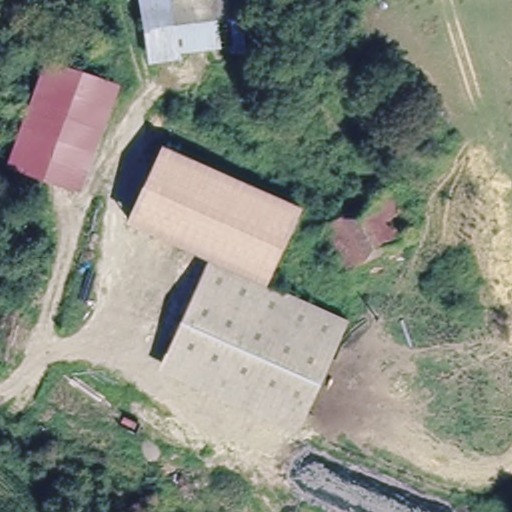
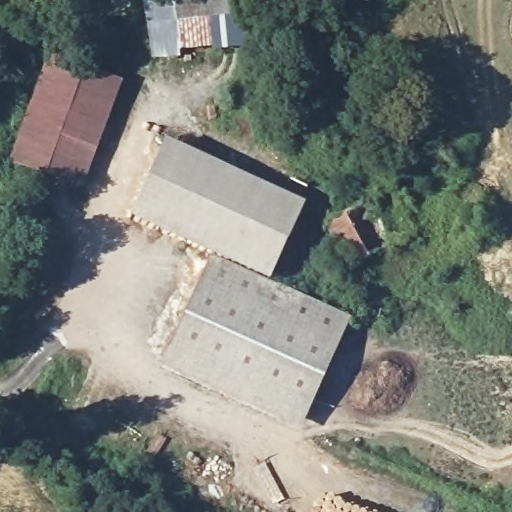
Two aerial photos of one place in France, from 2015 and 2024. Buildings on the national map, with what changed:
unchanged [(151,6),(149,0),(246,0),(255,26),(197,45),(166,55),(151,6)]
unchanged [(83,190),(9,161),(42,57),(121,80),(83,190)]
unchanged [(129,219),(164,141),(306,204),(269,283),(210,254),(129,219)]
unchanged [(405,221),(410,216),(415,224),(351,262),(329,227),(349,213),(345,206),(357,197),(363,203),(384,189),(405,221)]
unchanged [(183,320),(186,311),(200,268),(294,300),(343,316),(333,345),(330,355),(311,413),(304,431),(161,385),(168,365),(183,320)]

